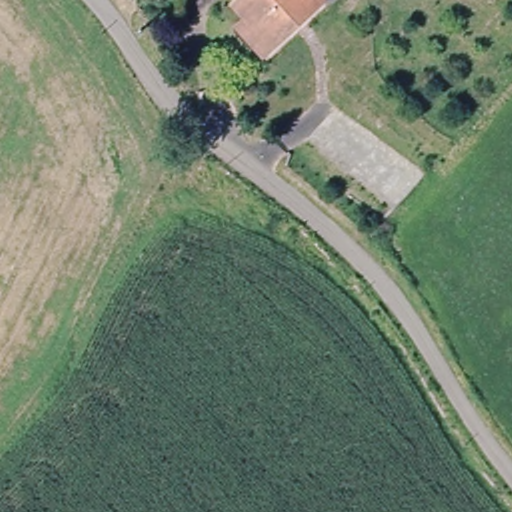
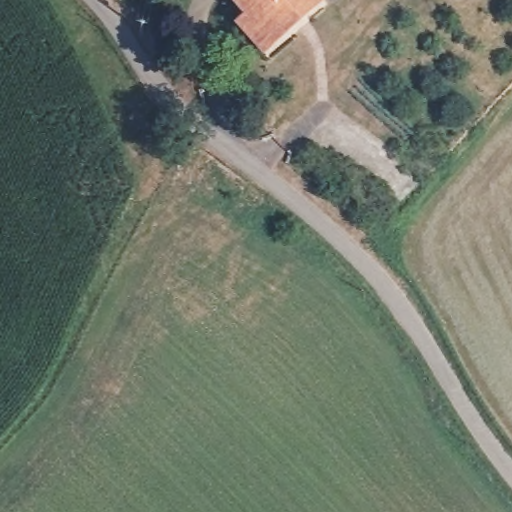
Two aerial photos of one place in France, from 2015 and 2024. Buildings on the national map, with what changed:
unchanged [(250,13),(263,0),(328,0),(332,4),(287,50),(278,60),(253,39),(264,28),(250,13)]

